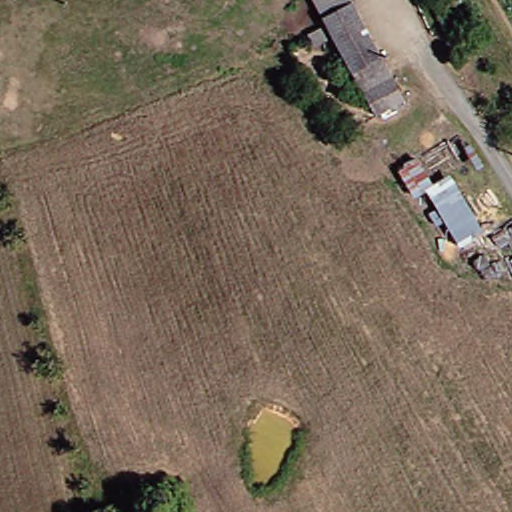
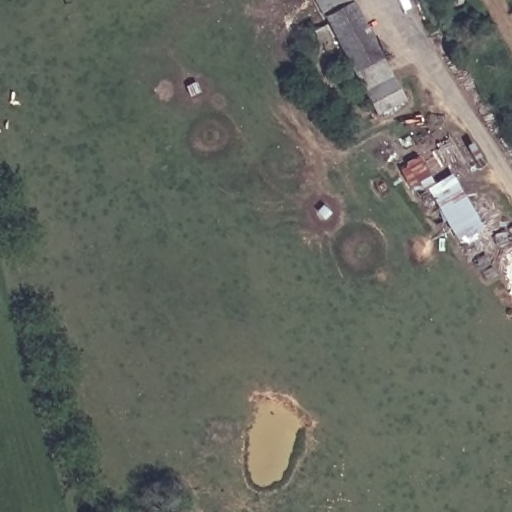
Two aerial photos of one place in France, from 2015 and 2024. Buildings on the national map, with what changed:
unchanged [(348,75),(333,49),(324,54),(310,27),(320,22),(307,0),(344,0),(347,6),(377,62),(387,78),(404,109),(374,123),(359,92),(348,75)]
unchanged [(423,193),(410,200),(392,170),(413,160),(427,186),(447,175),(482,235),(454,251),(423,193)]

